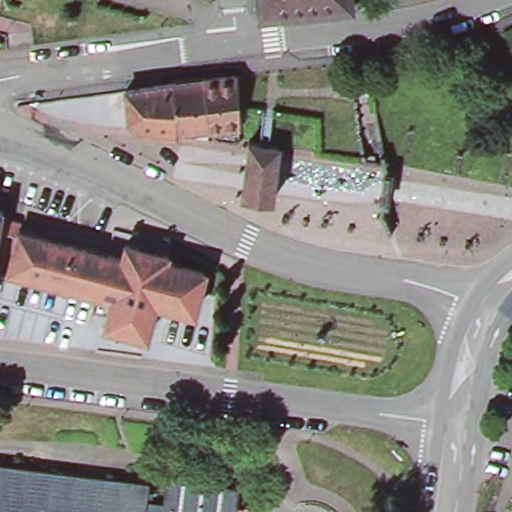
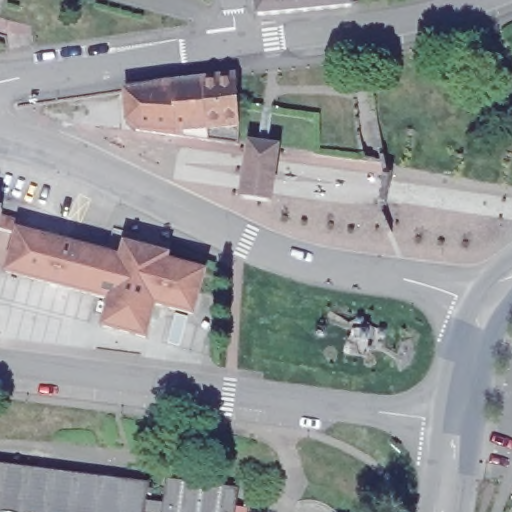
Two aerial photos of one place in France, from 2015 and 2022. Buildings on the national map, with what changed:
unchanged [(350,5),(257,15),(255,0),(350,0),(350,5)]
unchanged [(209,140),(183,136),(175,135),(137,130),(127,121),(126,90),(173,83),(203,79),(235,75),(240,126),(239,144),(209,140)]
unchanged [(249,141),(279,145),(278,150),(270,202),(241,198),(249,145),(249,141)]
unchanged [(382,152),(392,152),(393,229),(385,228),(382,152)]
unchanged [(2,216),(16,219),(14,232),(0,230),(0,210),(2,211),(2,216)]
unchanged [(19,230),(107,253),(95,294),(7,270),(17,230),(19,230)]
unchanged [(117,255),(121,257),(125,242),(165,252),(167,254),(166,259),(178,262),(205,270),(194,312),(167,305),(155,302),(146,336),(144,335),(103,325),(110,298),(95,294),(107,253),(117,255)]
unchanged [(164,503),(167,479),(237,488),(234,512),(155,512),(145,510),(144,512),(0,512),(0,462),(149,481),(146,500),(164,503)]

